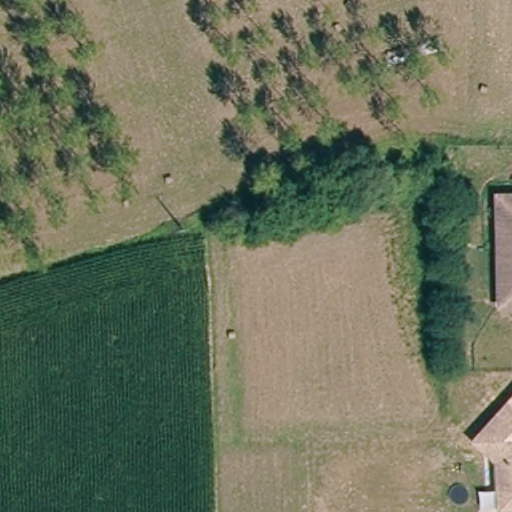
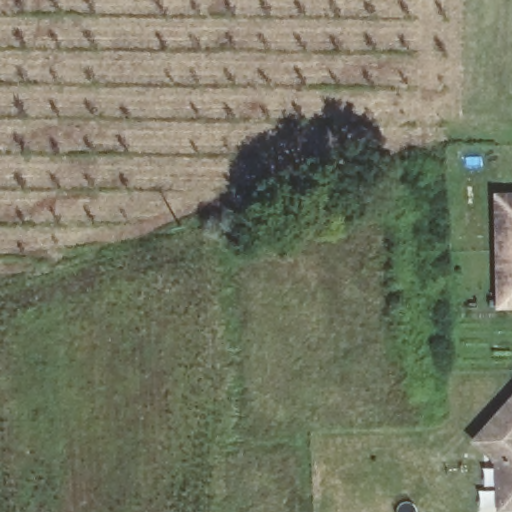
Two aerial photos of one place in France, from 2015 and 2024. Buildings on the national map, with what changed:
unchanged [(492,198),(512,198),(512,307),(493,307),(492,198)]
unchanged [(512,398),(512,412),(506,407),(512,398)]
unchanged [(502,458),(479,438),(506,407),(512,412),(512,506),(504,506),(503,488),(502,458)]

